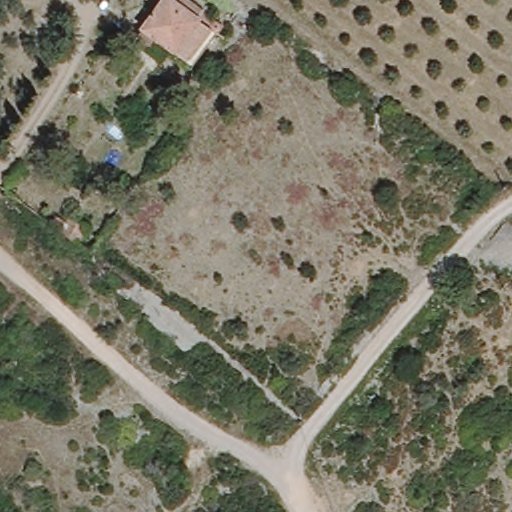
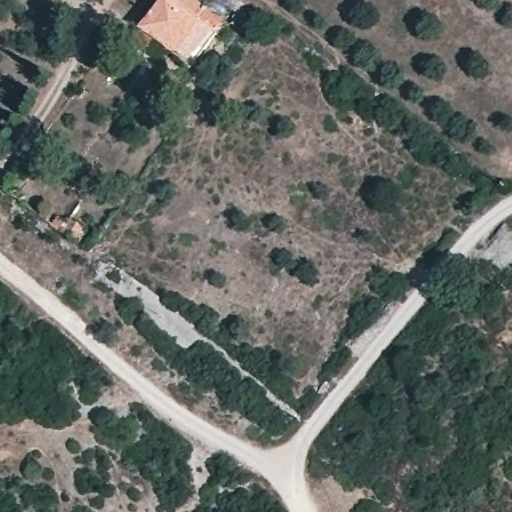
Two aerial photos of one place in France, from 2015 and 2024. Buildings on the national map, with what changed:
unchanged [(211,19),(224,32),(198,67),(181,54),(143,29),(166,0),(184,0),(211,19)]

